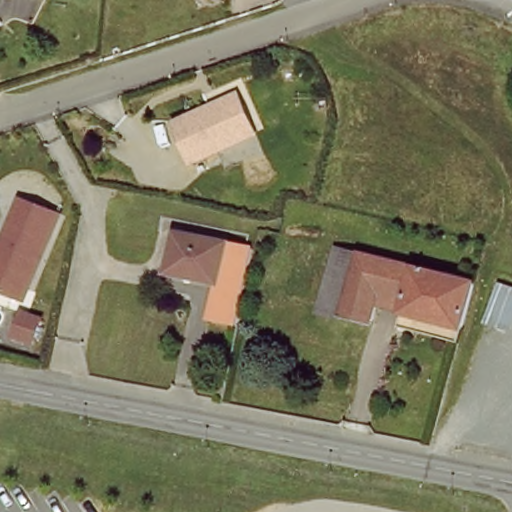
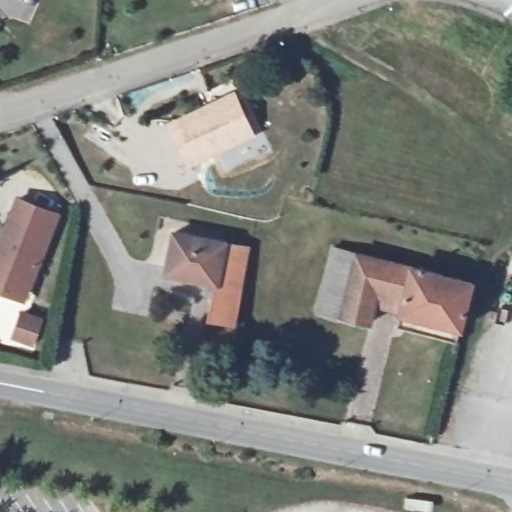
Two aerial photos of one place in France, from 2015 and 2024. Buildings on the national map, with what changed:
unchanged [(196,163),(178,125),(214,108),(240,96),(242,102),(258,135),(196,163)]
unchanged [(14,298),(0,293),(0,249),(2,250),(21,204),(59,219),(29,292),(25,303),(14,298)]
unchanged [(209,320),(216,286),(167,275),(176,235),(254,252),(253,257),(238,326),(209,320)]
unchanged [(398,327),(402,312),(404,303),(378,297),(372,323),(316,310),(322,282),(331,245),(355,251),(470,281),(459,327),(456,341),(398,327)]

